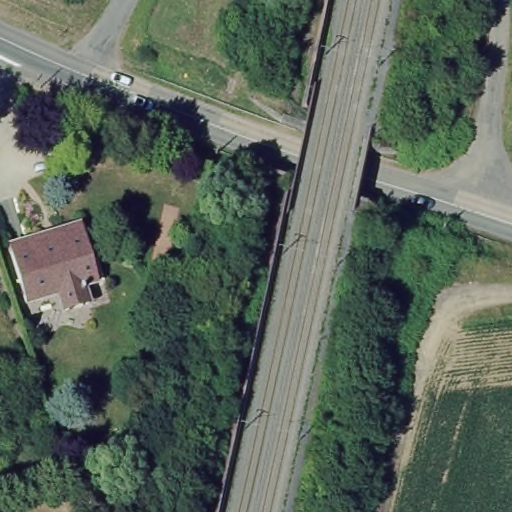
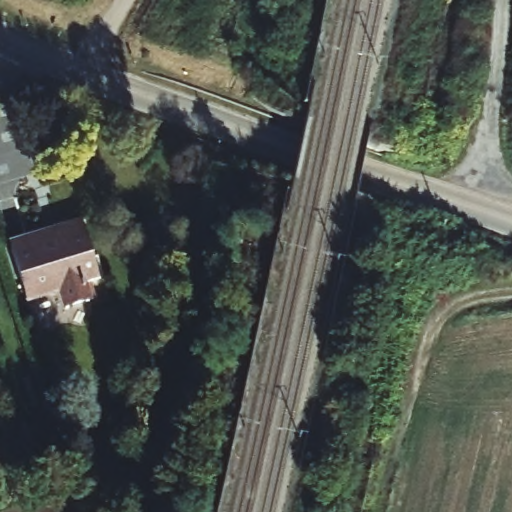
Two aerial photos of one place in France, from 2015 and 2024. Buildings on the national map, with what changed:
unchanged [(98,274),(83,279),(89,298),(65,305),(59,287),(27,296),(12,247),(10,240),(60,226),(83,219),(98,274)]

